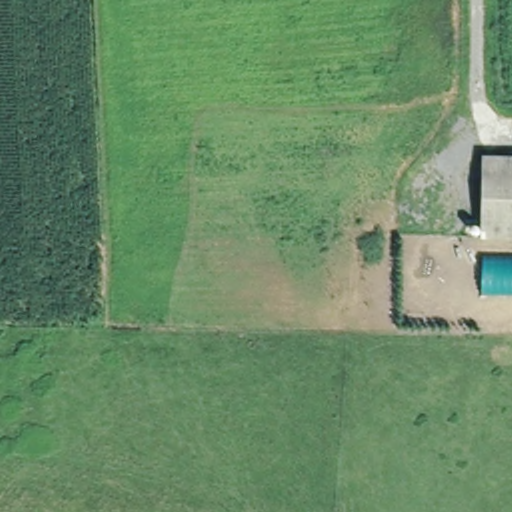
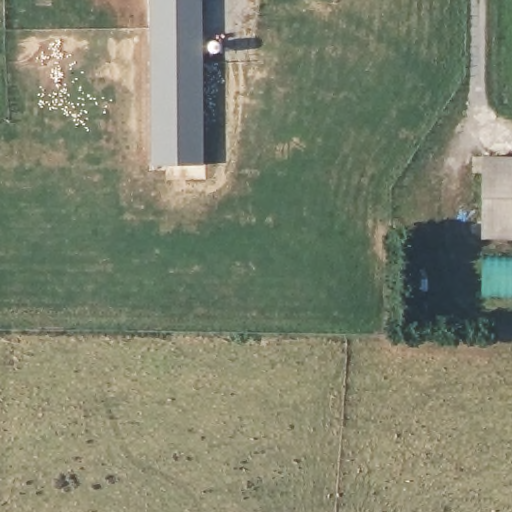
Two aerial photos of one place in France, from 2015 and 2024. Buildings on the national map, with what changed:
new [(203,165),(151,166),(149,0),(203,0),(203,165)]
unchanged [(485,164),(512,165),(512,244),(484,244),(485,164)]
new [(512,262),(512,289),(481,286),(482,275),(483,259),(512,262)]

